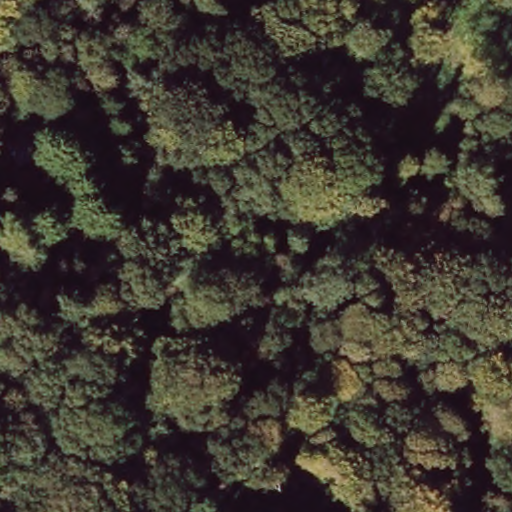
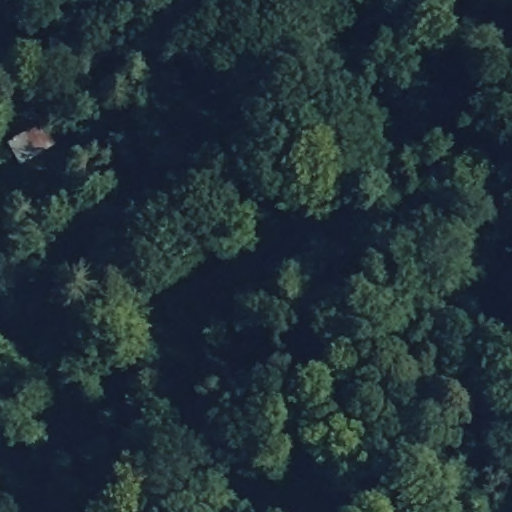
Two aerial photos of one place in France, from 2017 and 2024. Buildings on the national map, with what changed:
unchanged [(8,135),(44,124),(50,147),(17,157),(8,135)]

